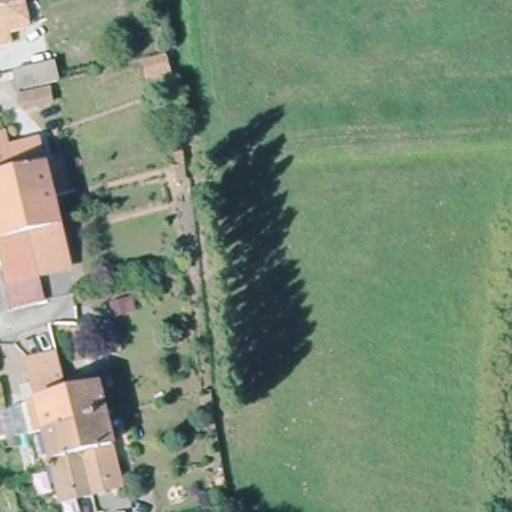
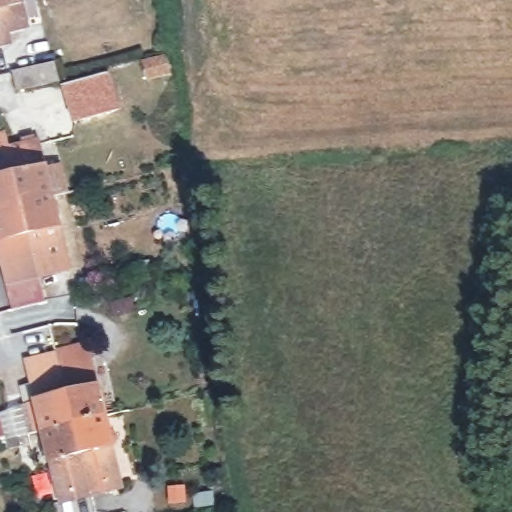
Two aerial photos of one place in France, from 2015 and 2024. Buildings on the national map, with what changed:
unchanged [(4,40),(5,46),(0,48),(0,0),(20,0),(29,34),(4,40)]
unchanged [(167,72),(146,77),(143,63),(164,58),(167,72)]
unchanged [(12,91),(8,73),(48,64),(52,81),(12,91)]
new [(109,71),(121,109),(71,123),(60,84),(109,71)]
unchanged [(16,110),(13,96),(54,86),(56,101),(16,110)]
unchanged [(22,209),(12,165),(18,164),(14,149),(39,143),(52,201),(22,209)]
unchanged [(0,214),(0,149),(4,167),(12,165),(22,209),(0,214)]
unchanged [(68,270),(38,277),(22,209),(52,201),(68,270)]
unchanged [(6,284),(0,262),(0,214),(22,209),(38,277),(36,278),(43,304),(11,311),(6,284)]
unchanged [(43,433),(27,437),(20,407),(36,403),(26,365),(59,357),(65,383),(76,425),(75,425),(43,433)]
unchanged [(90,377),(93,387),(95,387),(103,418),(76,425),(65,383),(90,377)]
unchanged [(114,462),(115,490),(93,496),(75,425),(76,425),(103,418),(114,462)]
unchanged [(0,443),(0,419),(4,419),(6,443),(0,443)]
unchanged [(61,504),(43,433),(75,425),(93,496),(61,504)]

